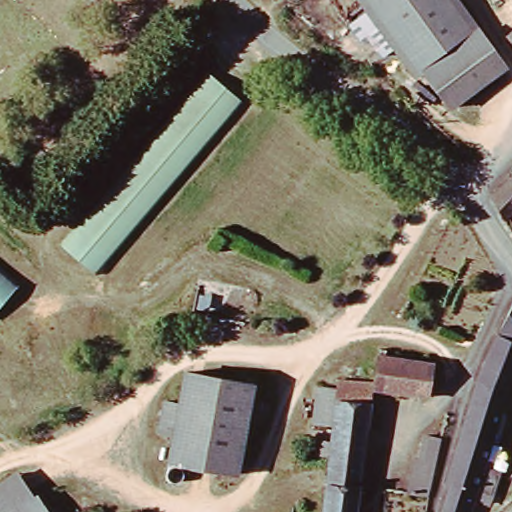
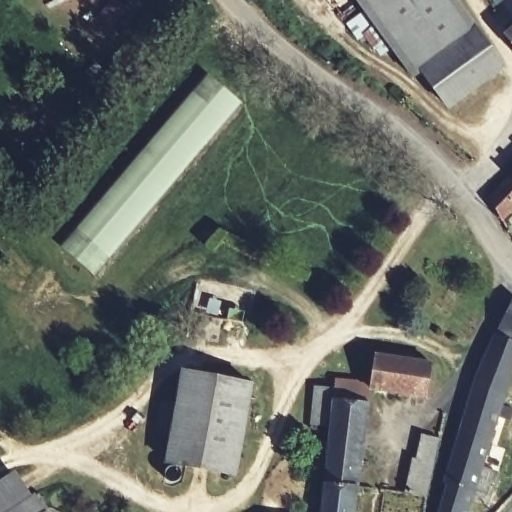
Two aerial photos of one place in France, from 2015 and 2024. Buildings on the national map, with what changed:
unchanged [(402,51),(369,5),(365,0),(457,0),(473,22),(418,60),(412,65),(402,51)]
unchanged [(369,5),(402,51),(378,69),(343,24),(369,5)]
unchanged [(418,60),(473,22),(500,60),(446,97),(418,60)]
unchanged [(512,29),(512,46),(504,36),(512,29)]
unchanged [(241,104),(96,273),(59,244),(207,76),(241,104)]
unchanged [(512,211),(500,221),(489,200),(511,175),(512,176),(512,211)]
demolished [(18,282),(0,303),(0,268),(18,282)]
unchanged [(442,484),(483,357),(512,302),(512,341),(511,343),(512,344),(512,378),(469,512),(438,512),(446,485),(442,484)]
unchanged [(512,341),(512,344),(511,343),(512,341)]
unchanged [(369,393),(369,386),(376,350),(384,351),(384,357),(432,363),(427,400),(369,393)]
unchanged [(186,371),(254,388),(232,476),(166,459),(173,431),(151,425),(157,403),(177,408),(186,371)]
unchanged [(369,386),(369,393),(354,512),(317,512),(335,382),(369,386)]
unchanged [(417,448),(432,451),(426,487),(413,484),(417,448)]
unchanged [(41,512),(0,512),(0,479),(13,470),(41,512)]

